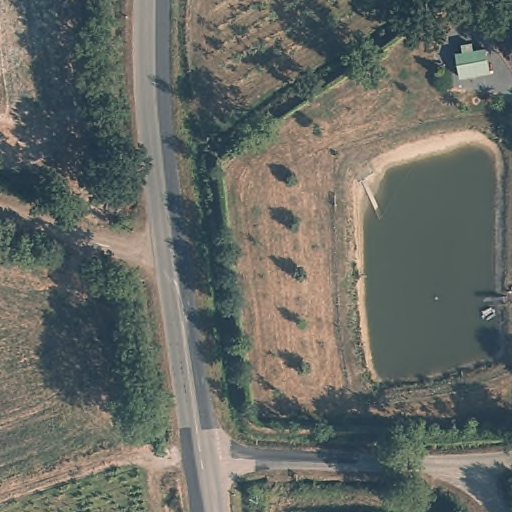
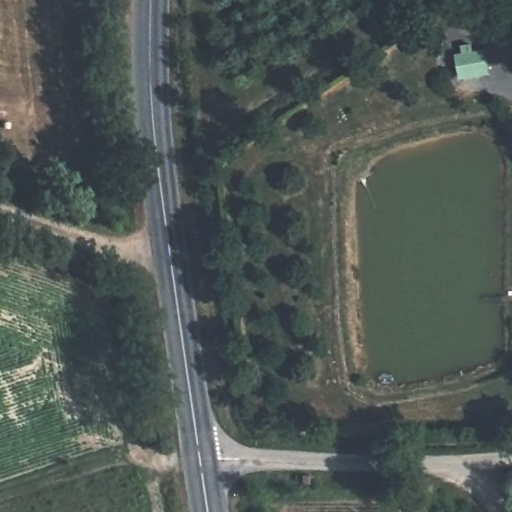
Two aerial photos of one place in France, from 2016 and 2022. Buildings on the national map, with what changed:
[]

